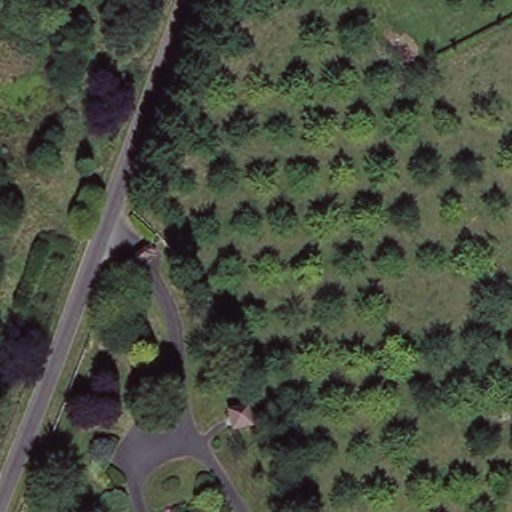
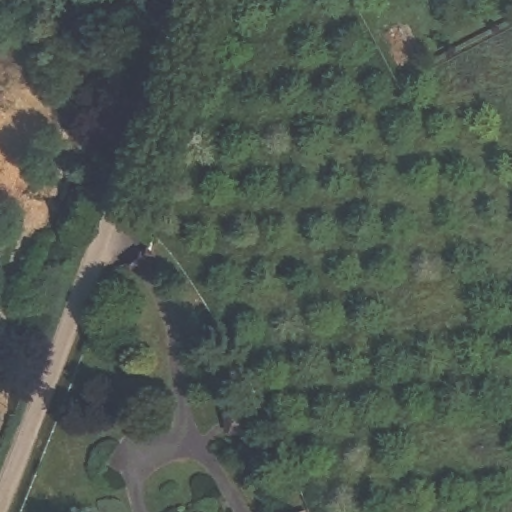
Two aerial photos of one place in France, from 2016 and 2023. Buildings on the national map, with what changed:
unchanged [(246,414),(251,430),(235,434),(230,418),(246,414)]

